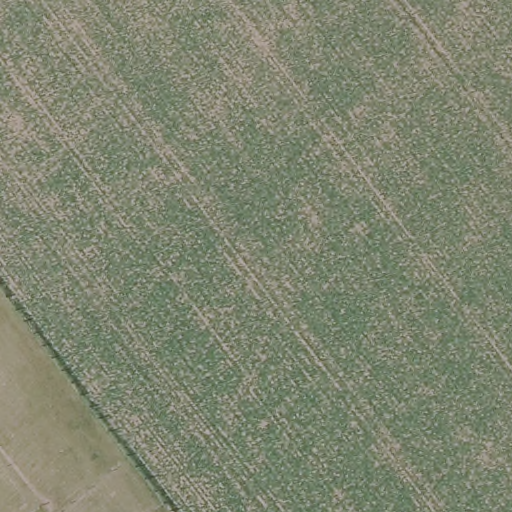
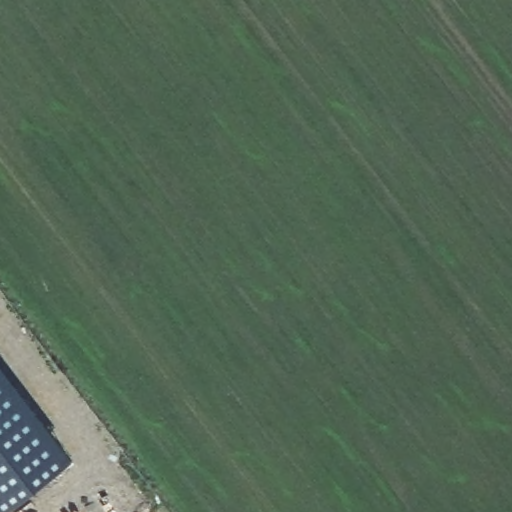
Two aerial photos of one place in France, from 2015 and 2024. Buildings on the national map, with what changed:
new [(3,512),(0,512),(0,365),(74,459),(3,512)]

